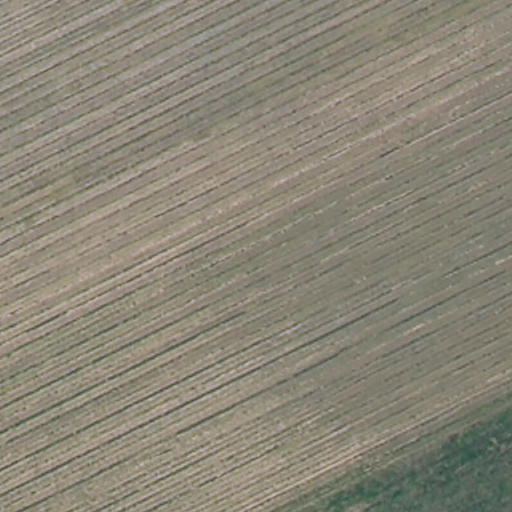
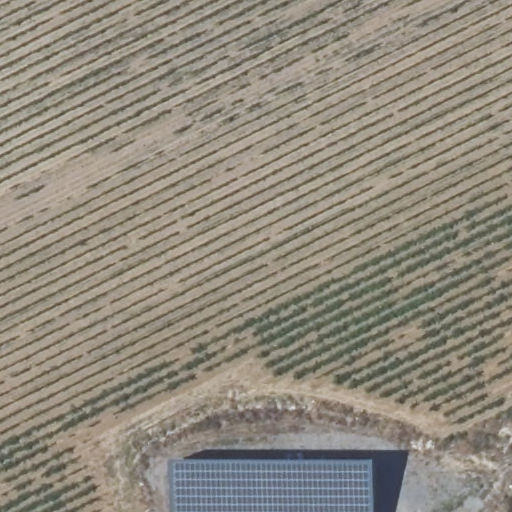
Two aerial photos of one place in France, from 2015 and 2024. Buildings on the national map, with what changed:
new [(173,462),(377,462),(377,512),(173,512),(173,462)]

